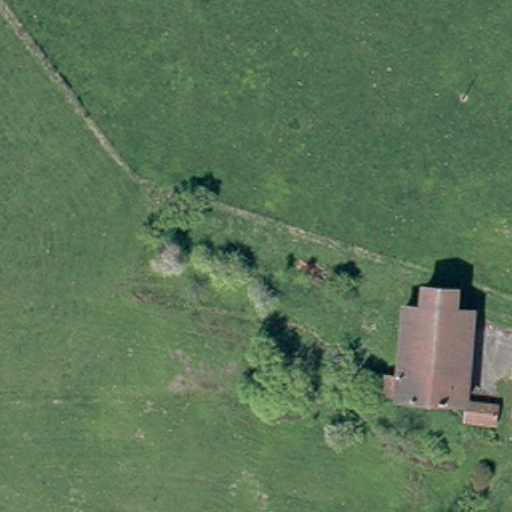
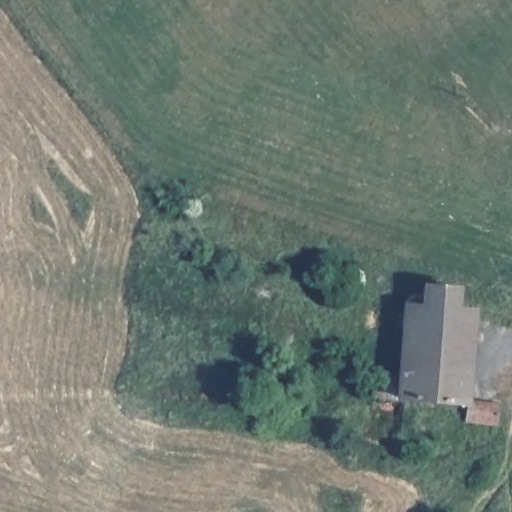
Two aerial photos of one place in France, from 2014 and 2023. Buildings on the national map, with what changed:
unchanged [(448,277),(448,301),(462,303),(456,393),(395,389),(397,352),(401,295),(424,298),(424,276),(448,277)]
unchanged [(485,411),(454,409),(456,393),(486,395),(485,411)]

